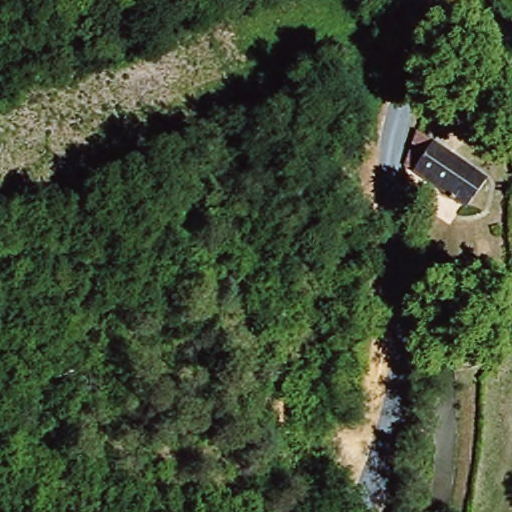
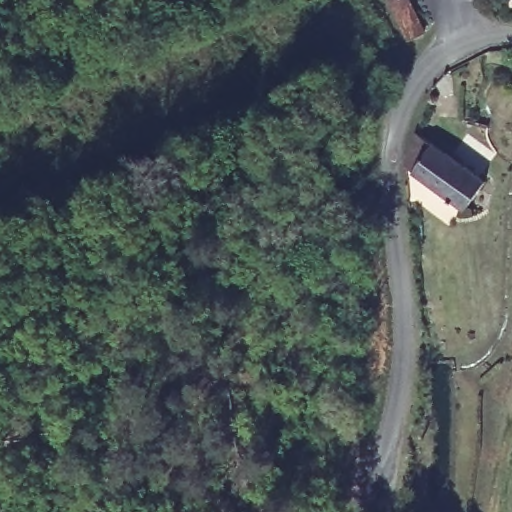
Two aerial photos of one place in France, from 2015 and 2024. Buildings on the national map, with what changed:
unchanged [(424,31),(409,39),(389,0),(409,0),(424,31)]
unchanged [(421,139),(495,185),(481,211),(412,169),(421,139)]

